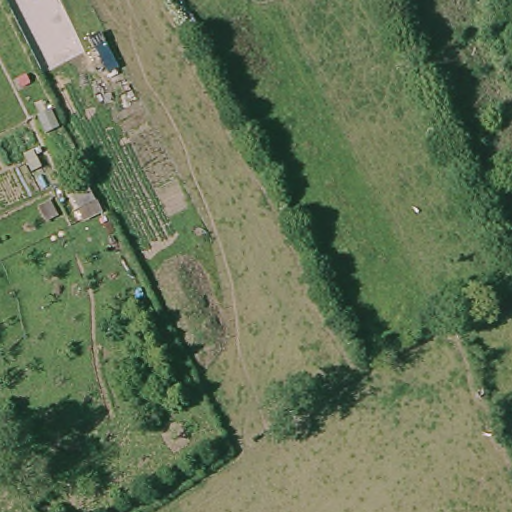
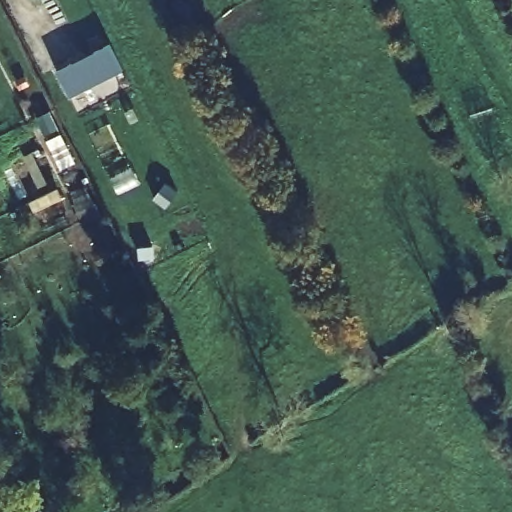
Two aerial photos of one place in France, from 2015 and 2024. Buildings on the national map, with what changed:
new [(110,44),(125,70),(70,99),(56,71),(110,44)]

